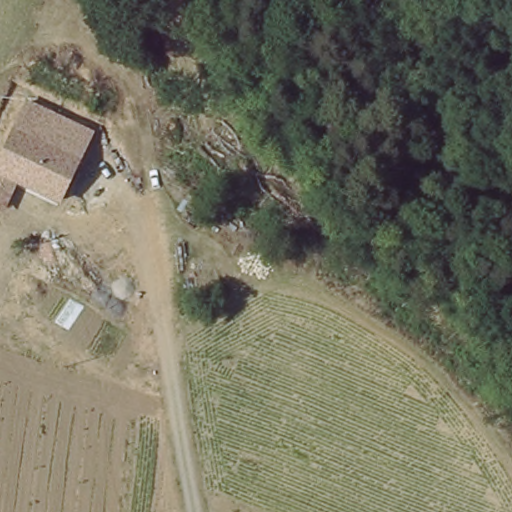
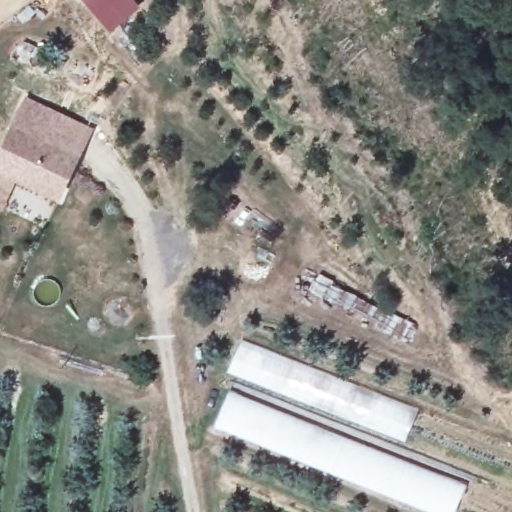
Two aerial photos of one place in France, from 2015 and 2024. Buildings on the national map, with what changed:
new [(84,0),(133,0),(140,8),(111,31),(84,0)]
unchanged [(5,126),(12,105),(73,125),(66,147),(5,126)]
unchanged [(62,160),(72,162),(61,198),(13,182),(0,212),(0,139),(5,126),(66,147),(62,160)]
new [(403,443),(227,372),(242,339),(419,409),(403,443)]
new [(229,392),(467,487),(456,512),(436,512),(215,427),(229,392)]

